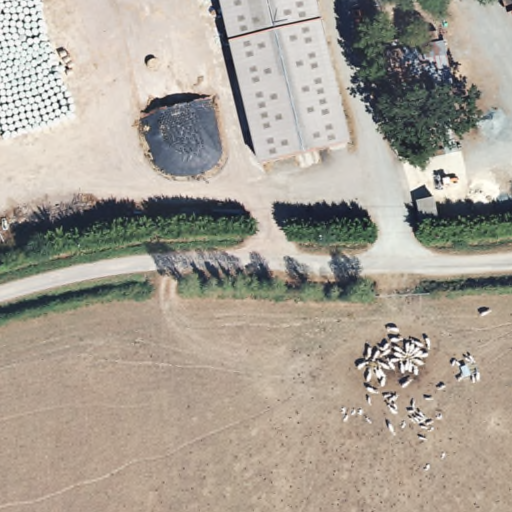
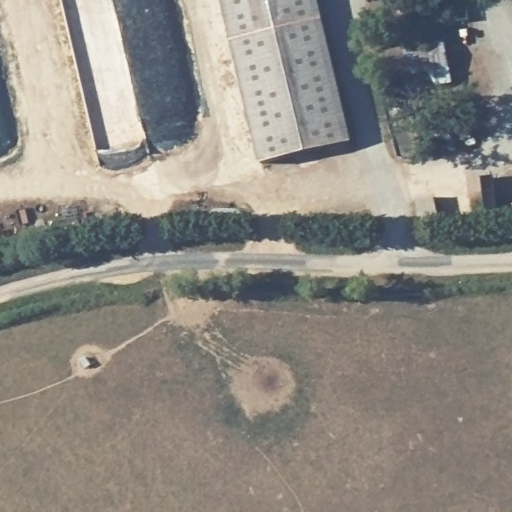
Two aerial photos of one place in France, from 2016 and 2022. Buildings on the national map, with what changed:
unchanged [(246,67),(224,0),(320,0),(365,135),(280,164),(246,67)]
unchanged [(444,35),(450,74),(390,85),(380,46),(444,35)]

